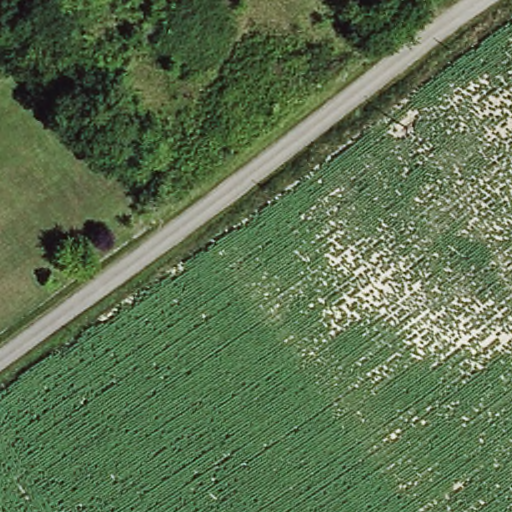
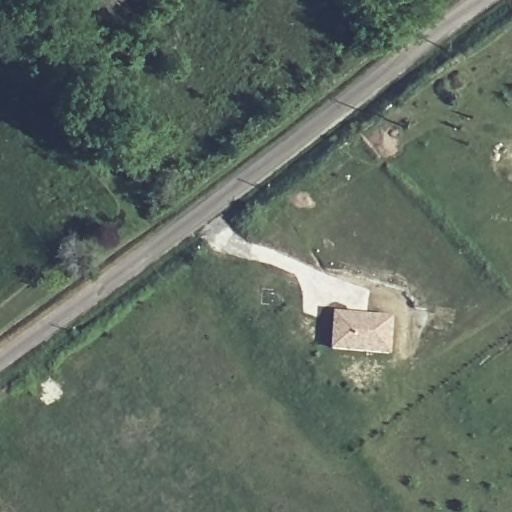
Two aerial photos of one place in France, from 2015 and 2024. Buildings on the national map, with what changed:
new [(331,351),(332,313),(393,317),(389,355),(331,351)]

